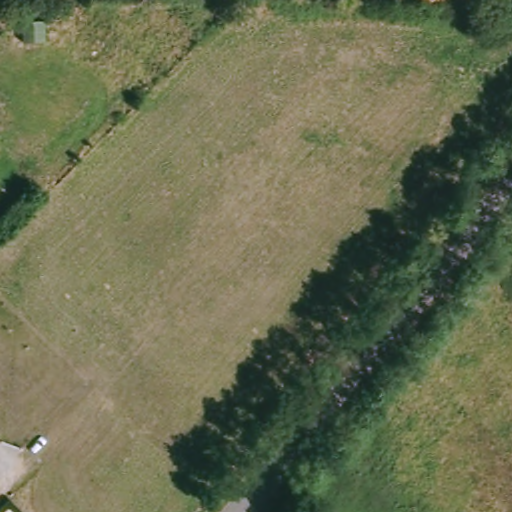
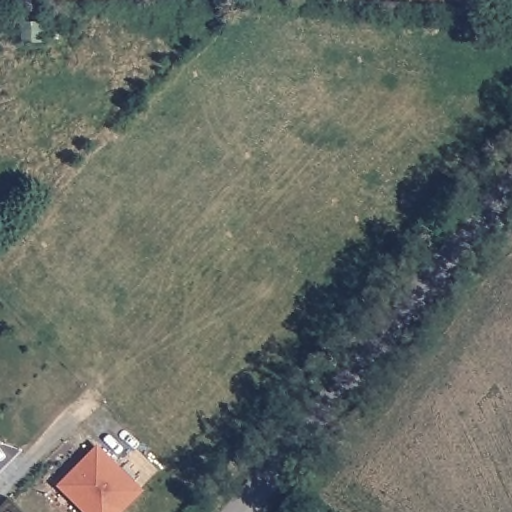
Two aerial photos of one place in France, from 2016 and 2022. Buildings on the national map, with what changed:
unchanged [(22,17),(53,17),(54,42),(22,44),(22,17)]
new [(86,456),(98,443),(141,484),(114,512),(91,512),(63,486),(63,474),(83,453),(86,456)]

